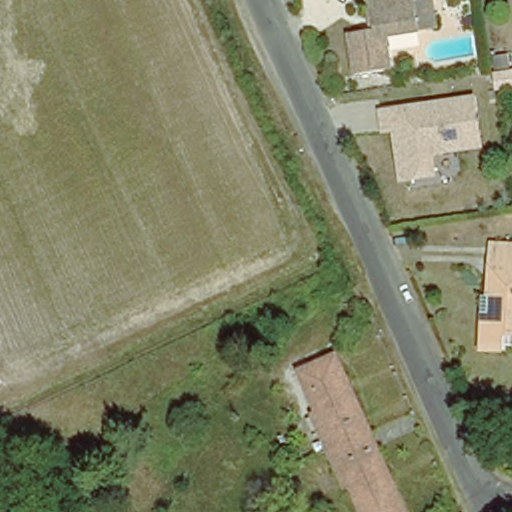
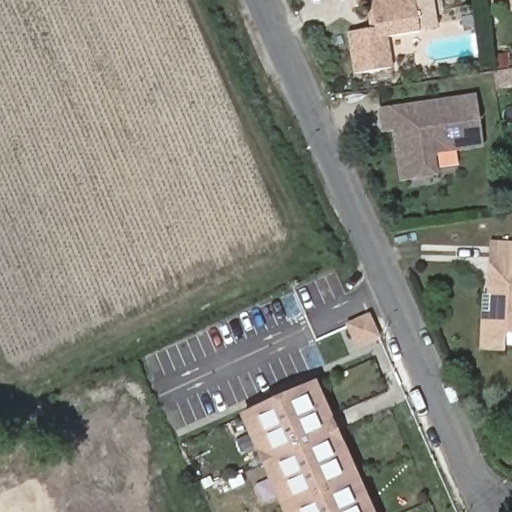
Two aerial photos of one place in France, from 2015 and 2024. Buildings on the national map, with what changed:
unchanged [(367,1),(357,2),(357,0),(414,0),(415,2),(425,0),(436,0),(440,29),(418,29),(387,34),(392,65),(355,71),(348,30),(371,26),(367,1)]
unchanged [(512,9),(510,0),(512,0),(512,9)]
unchanged [(485,150),(437,157),(441,179),(402,184),(393,132),(383,134),(380,108),(478,95),(485,150)]
unchanged [(507,344),(506,350),(487,348),(482,348),(484,313),(492,314),(493,292),(490,291),(492,243),(512,244),(512,344),(507,344)]
demolished [(346,486),(314,415),(318,412),(300,371),(338,354),(409,512),(362,512),(350,485),(346,486)]
new [(374,512),(282,512),(239,416),(317,381),(374,512)]

